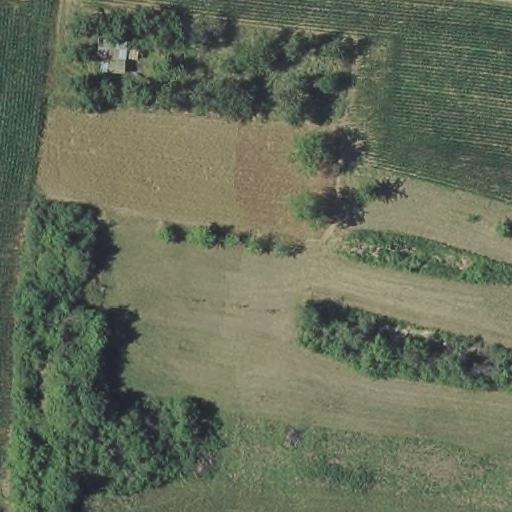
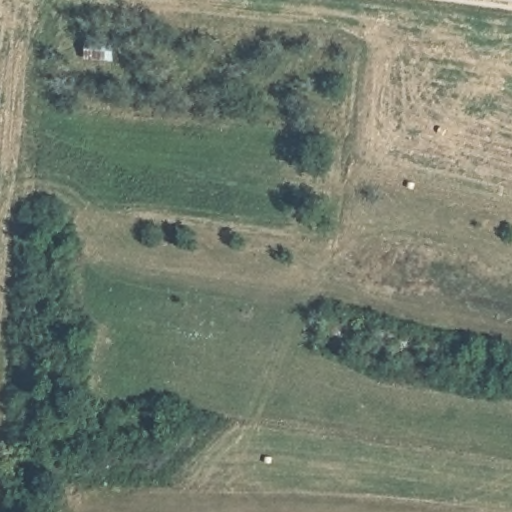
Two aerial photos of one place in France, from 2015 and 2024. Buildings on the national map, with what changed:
unchanged [(127,60),(110,57),(108,83),(85,86),(87,46),(127,47),(127,60)]

